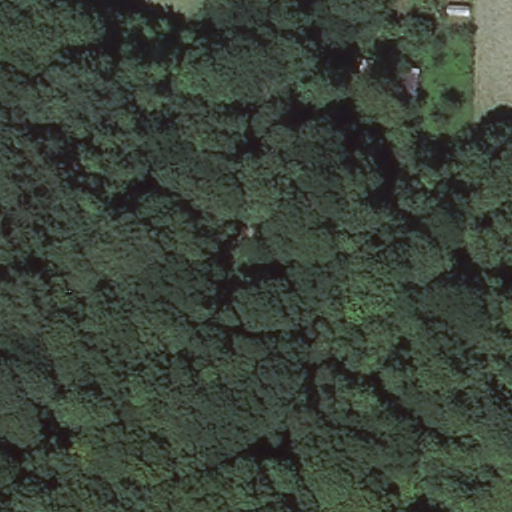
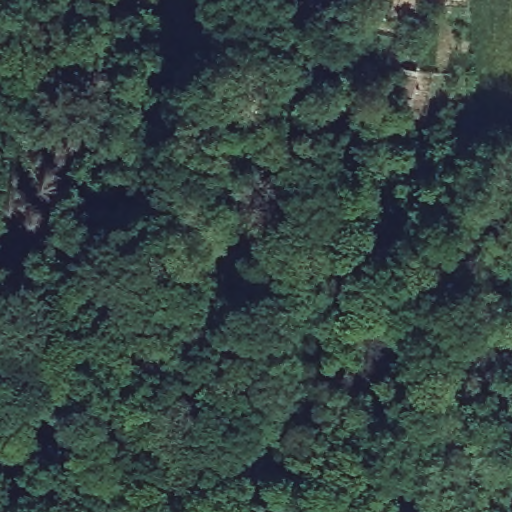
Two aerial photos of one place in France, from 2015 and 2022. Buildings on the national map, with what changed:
unchanged [(317,14),(308,54),(285,43),(296,8),(317,14)]

